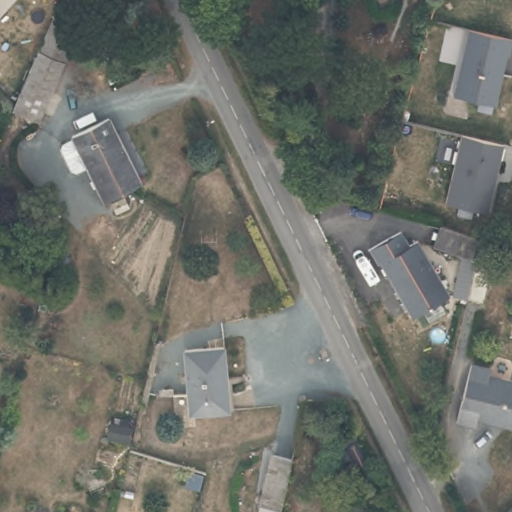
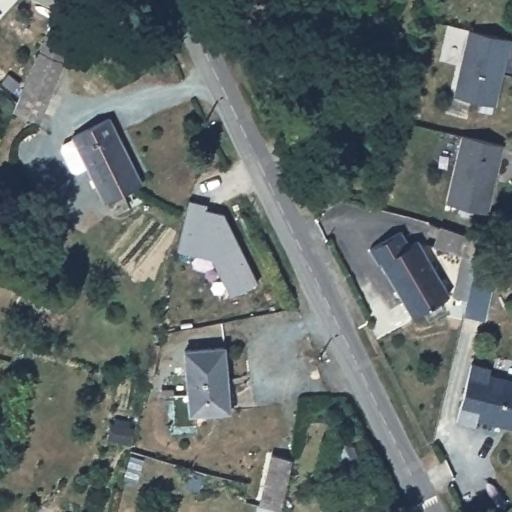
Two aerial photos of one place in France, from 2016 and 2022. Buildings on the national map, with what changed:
unchanged [(48,35),(59,10),(63,0),(75,0),(87,6),(82,19),(37,122),(14,112),(48,35)]
unchanged [(467,29),(511,38),(495,103),(452,94),(467,29)]
unchanged [(63,147),(74,142),(72,139),(107,121),(141,186),(106,204),(89,170),(79,175),(74,175),(61,152),(63,147)]
unchanged [(458,136),(501,144),(487,212),(443,202),(458,136)]
new [(208,203),(206,209),(224,212),(258,282),(230,297),(212,258),(176,251),(189,199),(208,203)]
unchanged [(460,254),(429,246),(436,225),(502,244),(483,303),(465,301),(466,297),(452,295),(460,254)]
unchanged [(406,230),(412,245),(422,241),(448,297),(410,315),(384,262),(382,262),(374,246),(406,230)]
unchanged [(230,412),(190,416),(184,352),(224,348),(230,412)]
unchanged [(492,368),(512,375),(512,423),(476,411),(473,417),(456,412),(475,357),(493,362),(492,368)]
unchanged [(127,445),(105,439),(108,424),(131,430),(127,445)]
unchanged [(353,462),(351,457),(340,463),(335,452),(340,451),(337,443),(340,442),(338,437),(338,435),(339,432),(341,430),(343,428),(347,428),(351,429),(353,431),(368,461),(355,467),(353,462)]
unchanged [(271,449),(298,456),(290,502),(282,500),(262,496),(271,449)]
unchanged [(282,500),(279,512),(258,512),(262,496),(282,500)]
unchanged [(365,502),(370,512),(351,512),(350,510),(365,502)]

